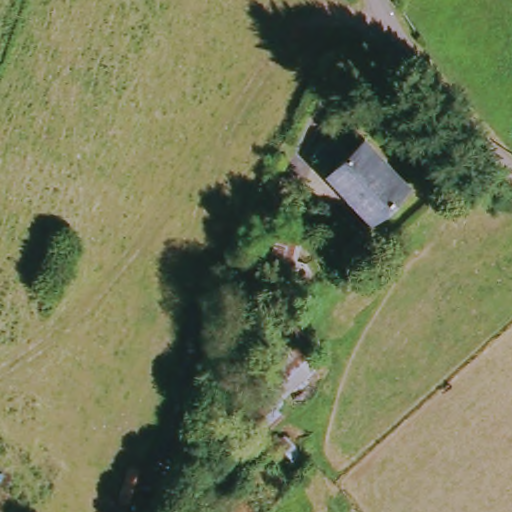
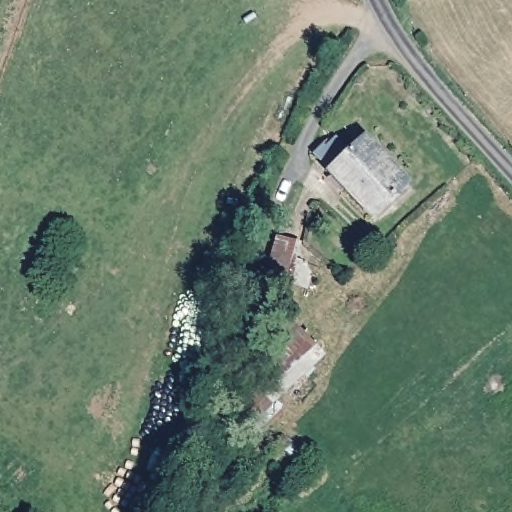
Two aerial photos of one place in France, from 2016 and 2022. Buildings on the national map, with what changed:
unchanged [(338,135),(356,152),(372,138),(415,184),(375,219),(318,154),(319,152),(338,135)]
unchanged [(256,166),(265,144),(285,150),(276,174),(256,166)]
unchanged [(313,290),(305,287),(270,273),(282,236),(303,245),(300,257),(315,262),(321,271),(313,290)]
unchanged [(260,399),(248,387),(261,375),(256,370),(270,357),(263,350),(297,318),(318,341),(260,399)]
unchanged [(260,399),(318,341),(329,352),(271,410),(260,399)]

